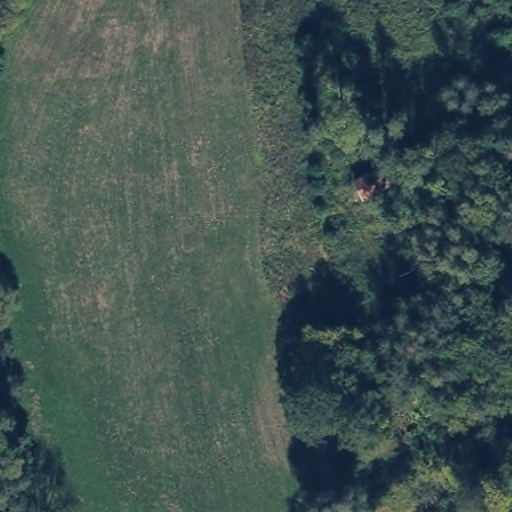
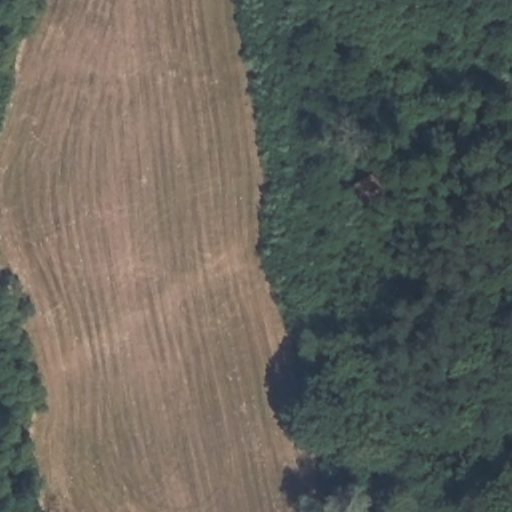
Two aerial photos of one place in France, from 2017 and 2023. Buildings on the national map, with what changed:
unchanged [(366,201),(356,185),(381,171),(390,187),(366,201)]

